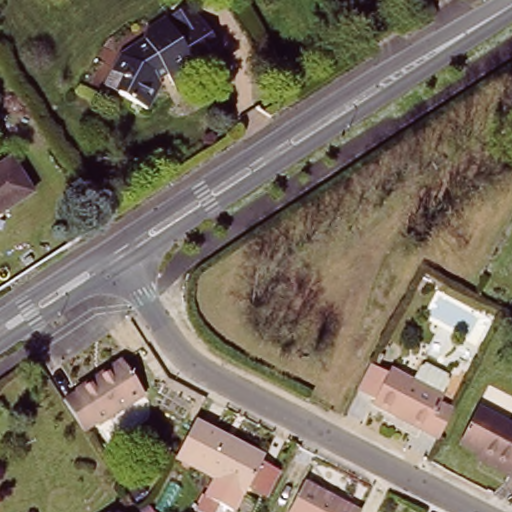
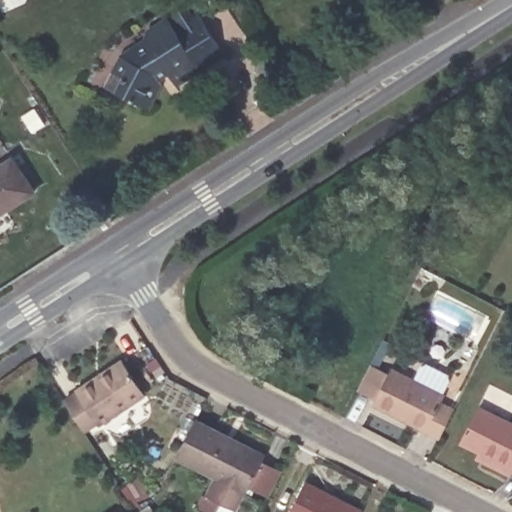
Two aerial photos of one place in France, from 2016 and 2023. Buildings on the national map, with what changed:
unchanged [(120,60),(128,45),(148,32),(153,21),(171,9),(204,60),(180,76),(171,62),(166,67),(166,77),(151,101),(123,84),(110,77),(120,60)]
unchanged [(0,213),(0,165),(15,155),(38,189),(0,213)]
unchanged [(63,399),(76,390),(74,386),(119,357),(144,395),(100,423),(96,418),(80,430),(63,399)]
unchanged [(366,406),(368,401),(348,392),(363,362),(383,372),(384,368),(438,397),(434,402),(446,408),(431,437),(366,406)]
unchanged [(481,445),(464,436),(483,402),(512,417),(512,470),(489,458),(477,452),(481,445)]
unchanged [(230,440),(268,459),(264,467),(246,500),(176,463),(197,422),(230,440)]
unchanged [(298,479),(354,508),(353,512),(280,512),(298,479)]

